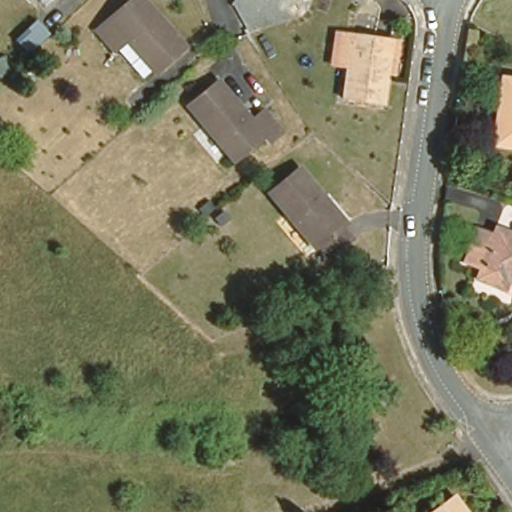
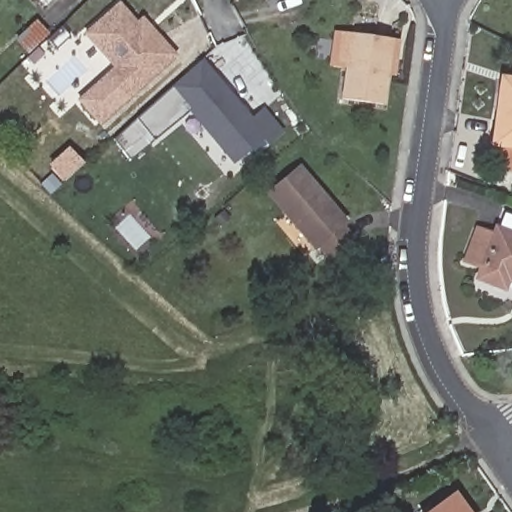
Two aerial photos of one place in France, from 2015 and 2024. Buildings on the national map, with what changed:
demolished [(141,0),(184,48),(157,72),(126,36),(114,47),(96,30),(131,0),(141,0)]
new [(136,21),(141,16),(177,56),(99,126),(75,100),(111,67),(82,34),(118,1),(136,21)]
unchanged [(385,104),(345,97),(350,68),(342,66),(346,34),(354,35),(394,42),(385,104)]
new [(203,60),(222,82),(220,84),(189,110),(129,160),(112,140),(203,60)]
unchanged [(512,78),(512,145),(497,143),(506,77),(512,78)]
unchanged [(220,84),(254,122),(266,112),(281,134),(269,145),(263,139),(233,163),(189,110),(220,84)]
unchanged [(303,166),(347,220),(343,223),(353,235),(330,252),(321,241),(317,244),(273,191),(303,166)]
unchanged [(512,234),(512,283),(509,290),(487,281),(490,274),(470,265),(485,230),(505,238),(507,232),(512,234)]
unchanged [(455,490),(471,512),(426,512),(455,490)]

